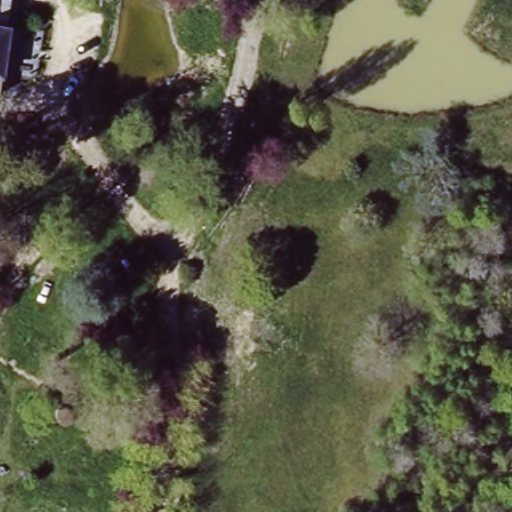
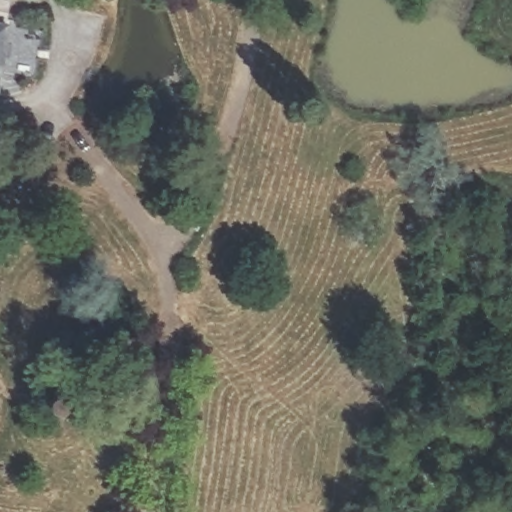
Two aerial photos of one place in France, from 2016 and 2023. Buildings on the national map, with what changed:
unchanged [(2,105),(0,105),(0,0),(17,0),(2,105)]

